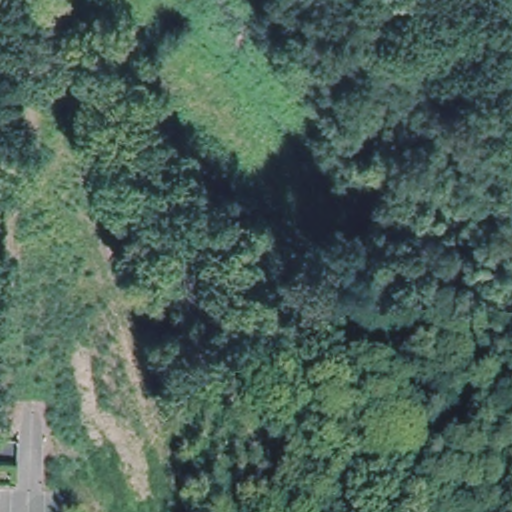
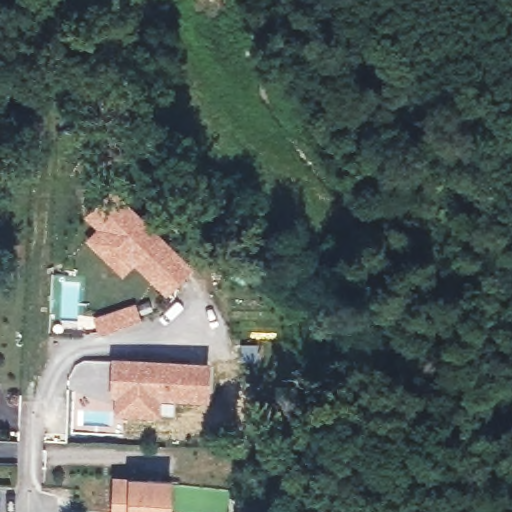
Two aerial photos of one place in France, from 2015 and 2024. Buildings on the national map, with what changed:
new [(86,240),(99,228),(85,214),(115,187),(194,266),(166,295),(135,264),(124,276),(86,240)]
new [(134,304),(139,317),(116,326),(109,328),(103,329),(98,317),(111,312),(134,304)]
new [(243,346),(258,346),(258,360),(243,360),(243,346)]
new [(213,363),(212,404),(162,400),(161,419),(115,416),(116,398),(111,397),(112,357),(213,363)]
new [(174,479),(172,512),(111,512),(113,475),(132,477),(174,479)]

